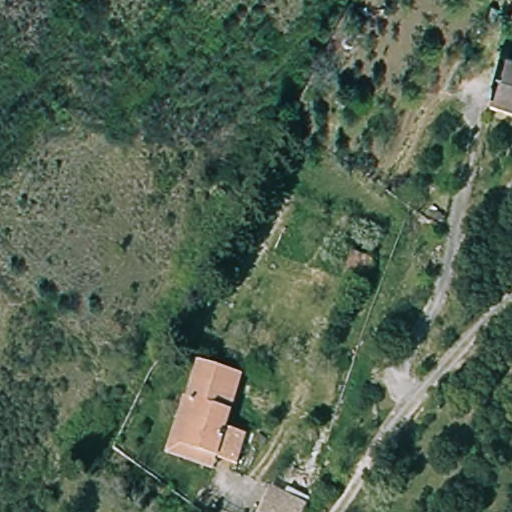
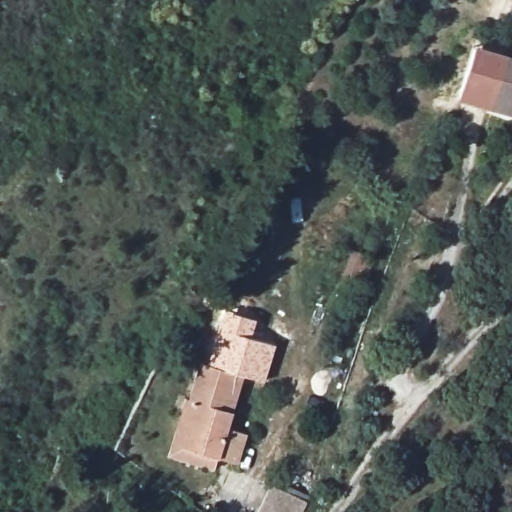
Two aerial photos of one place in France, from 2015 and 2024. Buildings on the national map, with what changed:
new [(495,108),(457,96),(474,45),(512,57),(512,59),(495,108)]
unchanged [(495,108),(512,59),(512,114),(495,108)]
new [(224,309),(256,319),(251,338),(275,345),(263,383),(241,377),(242,373),(207,365),(224,309)]
unchanged [(185,453),(196,406),(185,404),(195,363),(242,373),(230,429),(251,434),(246,465),(222,460),(185,453)]
unchanged [(220,473),(166,460),(180,403),(185,404),(196,406),(185,453),(222,460),(220,473)]
unchanged [(269,485),(307,501),(301,512),(257,512),(269,485)]

